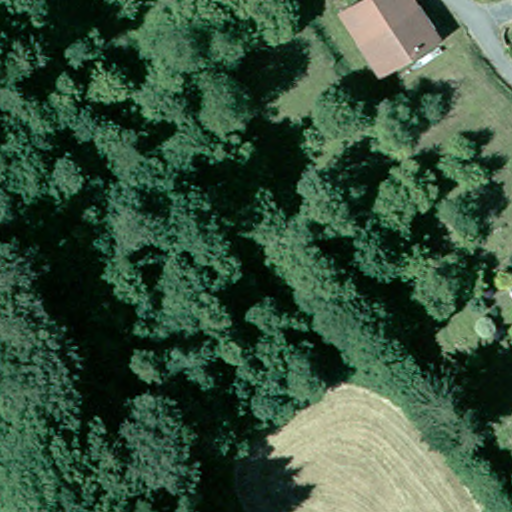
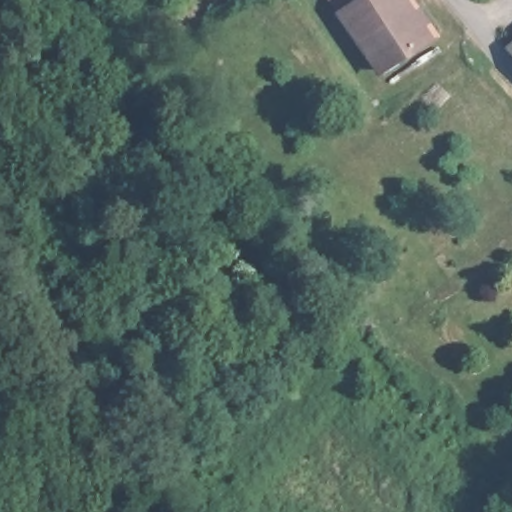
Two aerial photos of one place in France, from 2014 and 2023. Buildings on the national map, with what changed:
unchanged [(382,81),(378,75),(382,72),(329,0),(411,0),(439,38),(382,81)]

